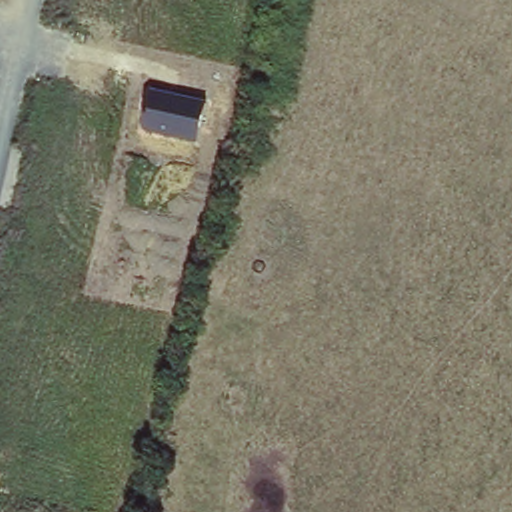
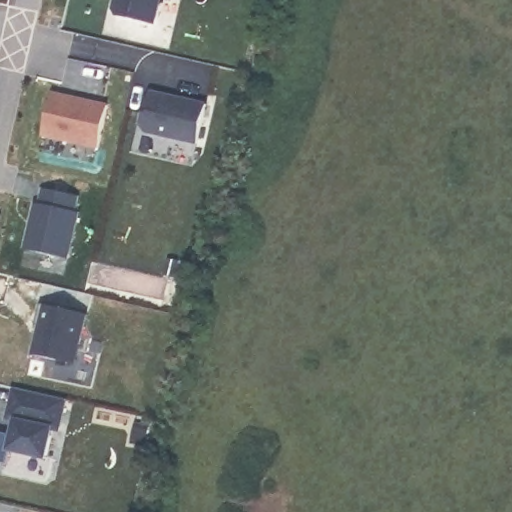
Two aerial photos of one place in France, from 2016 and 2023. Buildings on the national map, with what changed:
new [(155,24),(115,16),(119,0),(160,0),(155,24)]
new [(100,147),(43,135),(53,92),(109,105),(100,147)]
unchanged [(196,144),(141,132),(149,92),(207,104),(196,144)]
new [(75,211),(79,212),(70,257),(26,249),(36,202),(40,203),(43,189),(78,196),(75,211)]
new [(41,326),(36,325),(41,303),(87,314),(76,364),(34,355),(41,326)]
new [(61,431),(53,429),(47,459),(11,451),(8,464),(0,462),(0,433),(13,436),(16,421),(9,419),(15,387),(67,400),(61,431)]

